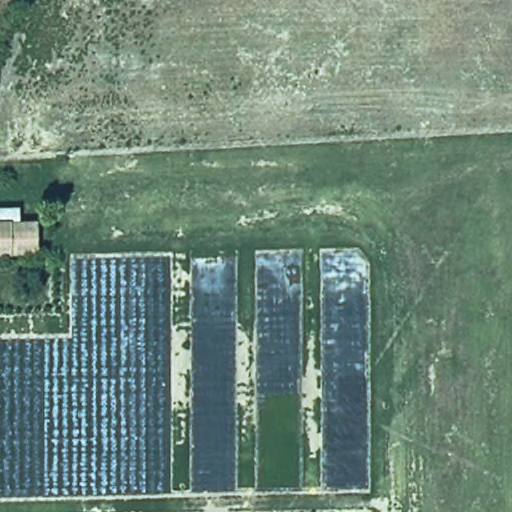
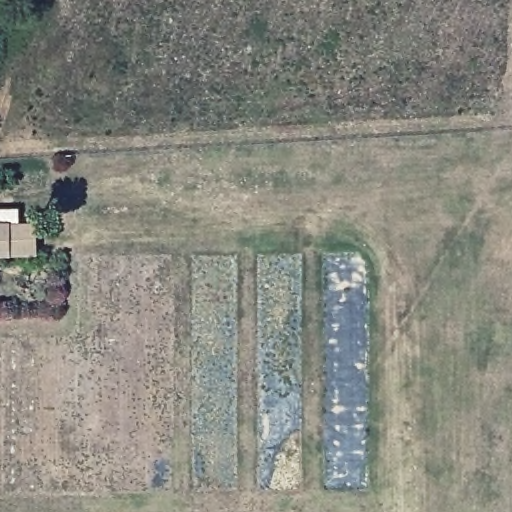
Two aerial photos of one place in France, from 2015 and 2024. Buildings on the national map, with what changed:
unchanged [(17,212),(17,225),(35,225),(34,260),(0,260),(0,214),(17,212)]

